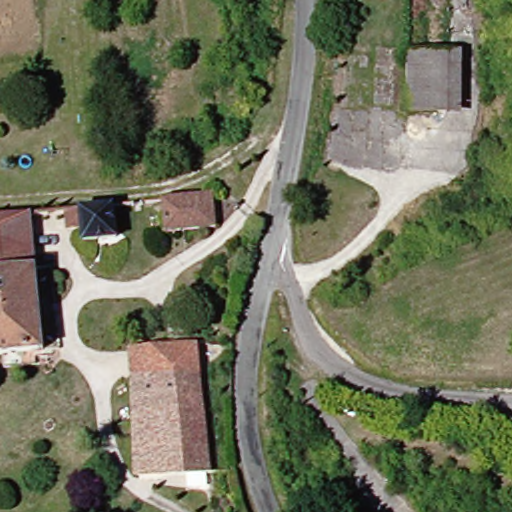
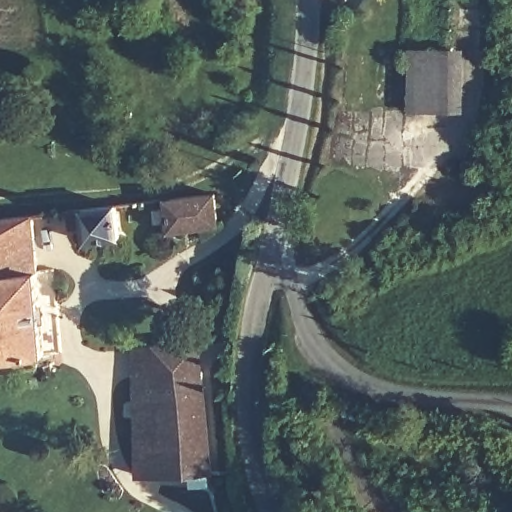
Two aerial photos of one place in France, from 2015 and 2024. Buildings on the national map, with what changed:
unchanged [(419,0),(461,0),(460,49),(467,49),(466,109),(416,108),(419,0)]
unchanged [(220,225),(167,230),(165,194),(215,190),(220,225)]
unchanged [(120,236),(85,241),(84,227),(69,227),(67,205),(117,200),(120,236)]
unchanged [(49,366),(34,367),(32,358),(0,361),(0,218),(40,214),(52,352),(51,354),(49,366)]
unchanged [(132,379),(131,348),(201,342),(204,375),(132,379)]
unchanged [(211,477),(136,481),(132,379),(204,375),(211,477)]

